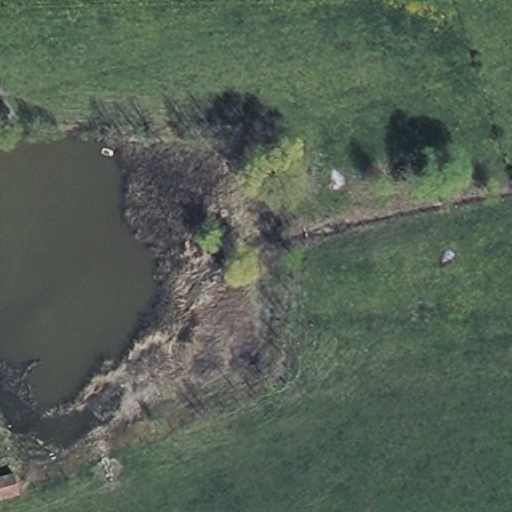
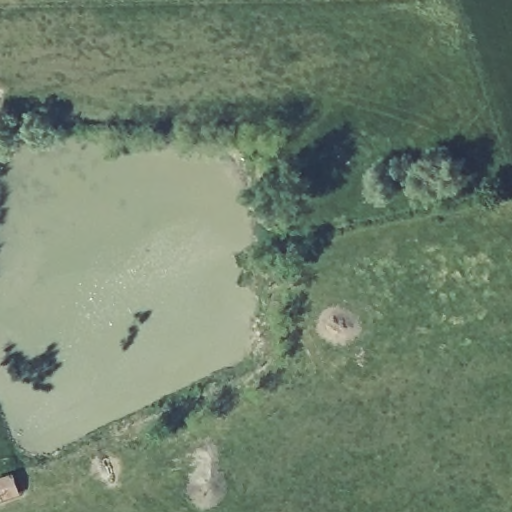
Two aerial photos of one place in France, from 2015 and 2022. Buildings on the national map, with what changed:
unchanged [(13,472),(20,494),(0,501),(0,476),(13,472)]

